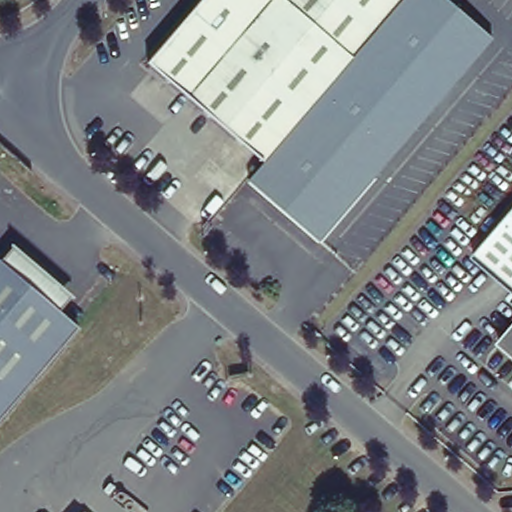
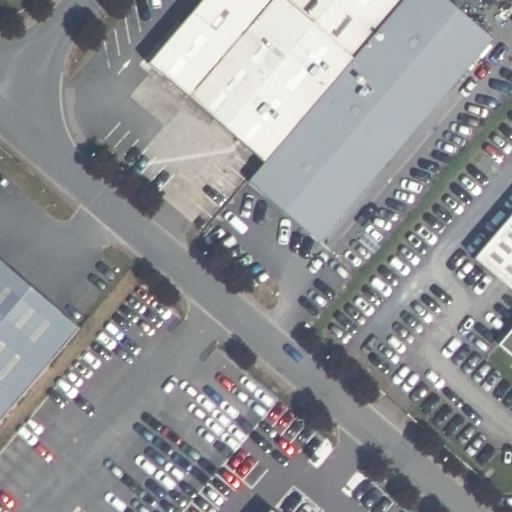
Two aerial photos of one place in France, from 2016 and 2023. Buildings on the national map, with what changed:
unchanged [(201,0),(336,0),(224,130),(147,64),(201,0)]
unchanged [(336,0),(400,0),(262,162),(224,130),(336,0)]
unchanged [(318,242),(247,182),(263,163),(262,162),(400,0),(446,0),(491,39),(318,242)]
unchanged [(512,287),(472,254),(512,208),(512,287)]
unchanged [(58,312),(0,262),(0,261),(11,248),(70,298),(58,312)]
unchanged [(0,419),(0,262),(58,312),(77,328),(0,419)]
unchanged [(512,324),(512,352),(498,340),(512,324)]

